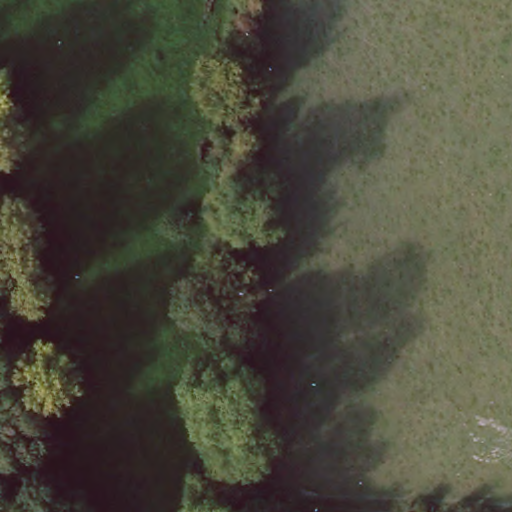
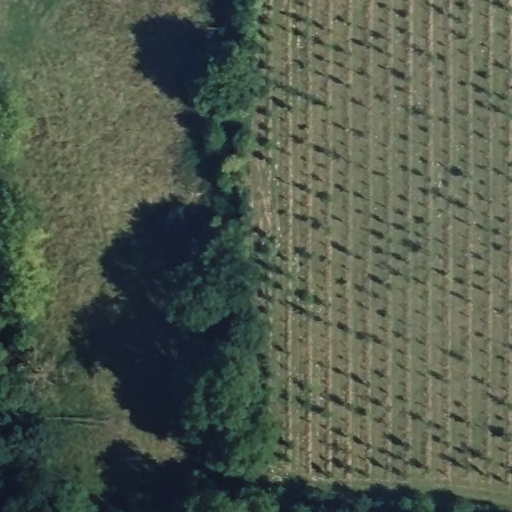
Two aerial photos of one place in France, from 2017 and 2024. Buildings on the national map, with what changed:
[]

